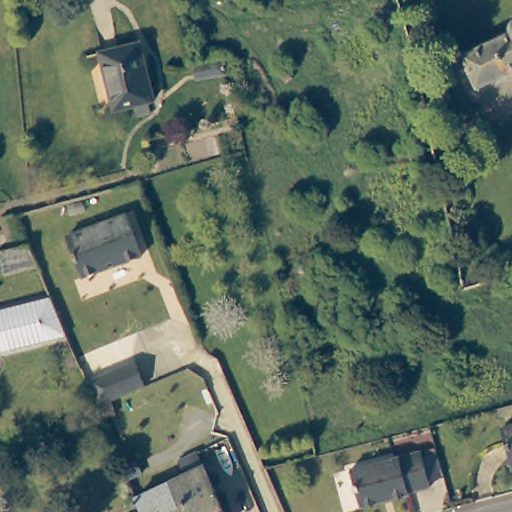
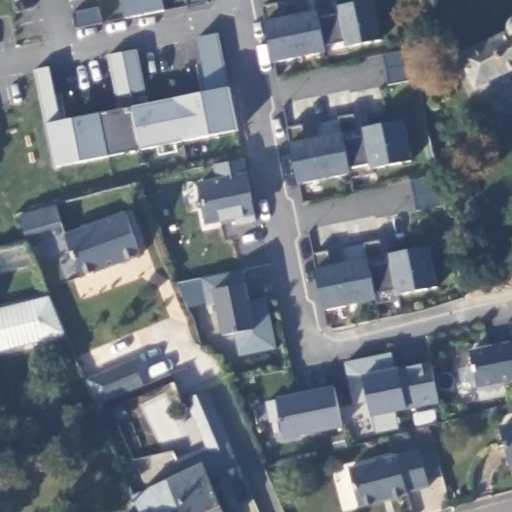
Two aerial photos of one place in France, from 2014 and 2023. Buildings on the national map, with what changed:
new [(126,20),(122,0),(162,0),(164,11),(126,20)]
new [(208,2),(187,7),(186,0),(208,0),(208,2)]
new [(339,15),(337,7),(369,0),(372,0),(381,41),(349,48),(350,55),(329,59),(326,53),(320,19),(339,15)]
new [(72,14),(99,8),(103,24),(76,30),(72,14)]
new [(319,11),(320,19),(326,53),(273,64),(266,22),(319,11)]
unchanged [(480,89),(465,57),(511,35),(510,29),(512,26),(512,74),(480,89)]
new [(74,156),(52,161),(34,71),(49,69),(62,130),(68,128),(66,121),(202,94),(203,100),(211,98),(210,92),(208,92),(197,39),(219,34),(237,124),(238,131),(218,135),(125,154),(109,157),(75,164),(54,168),(53,161),(74,156)]
demolished [(113,110),(100,54),(138,45),(151,101),(147,103),(149,112),(138,115),(136,105),(113,110)]
new [(411,49),(418,80),(388,85),(382,55),(411,49)]
new [(137,50),(146,91),(116,97),(108,56),(137,50)]
new [(210,92),(211,98),(203,100),(202,94),(210,92)]
new [(66,121),(68,128),(62,130),(60,122),(66,121)]
new [(363,137),(362,137),(362,131),(402,122),(411,163),(372,171),(372,175),(352,180),(351,176),(345,140),(363,137)]
new [(344,134),(345,140),(351,176),(298,187),(289,144),(344,134)]
new [(245,160),(256,216),(207,227),(198,183),(216,180),(213,166),(245,160)]
new [(438,175),(445,206),(416,211),(410,181),(438,175)]
new [(57,204),(63,226),(25,238),(18,216),(57,204)]
unchanged [(142,254),(82,276),(66,235),(126,212),(142,254)]
demolished [(38,265),(3,274),(0,264),(0,251),(1,250),(19,246),(25,244),(29,244),(38,265)]
new [(390,263),(389,254),(429,245),(436,288),(398,295),(399,301),(378,306),(376,301),(369,267),(390,263)]
new [(368,260),(369,267),(376,301),(324,311),(316,270),(368,260)]
new [(242,358),(240,333),(223,338),(216,307),(205,308),(200,280),(243,271),(247,284),(252,307),(268,304),(277,350),(242,358)]
unchanged [(0,352),(0,310),(49,298),(66,336),(0,352)]
new [(509,344),(512,343),(512,383),(478,390),(470,352),(509,344)]
new [(393,353),(398,371),(431,363),(439,403),(408,410),(372,418),(369,405),(354,406),(345,363),(393,353)]
unchanged [(96,406),(87,383),(132,365),(141,388),(96,406)]
new [(343,428),(286,440),(277,400),(335,388),(343,428)]
unchanged [(509,470),(498,430),(512,427),(512,469),(509,470)]
unchanged [(227,438),(241,468),(208,482),(197,455),(227,438)]
unchanged [(428,485),(407,491),(406,494),(358,507),(348,467),(417,448),(428,485)]
unchanged [(137,508),(134,503),(184,480),(178,463),(197,455),(220,512),(131,512),(130,511),(137,508)]

